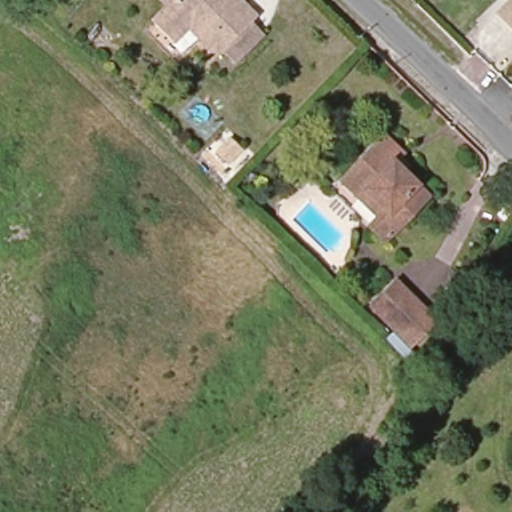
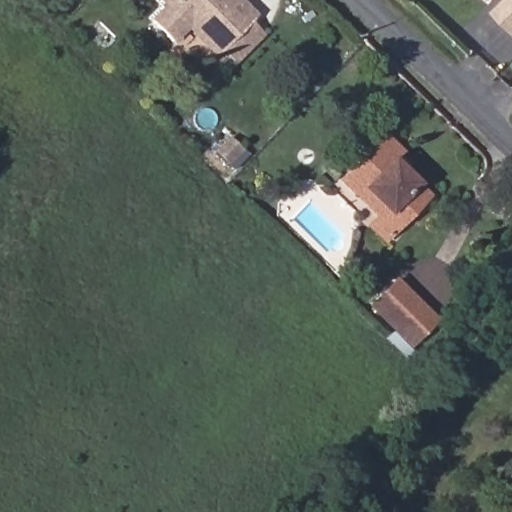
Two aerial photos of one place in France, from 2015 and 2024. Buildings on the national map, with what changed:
unchanged [(217,57),(202,42),(188,29),(170,46),(151,26),(168,9),(159,0),(238,0),(256,18),(252,22),(263,32),(231,64),(221,53),(217,57)]
unchanged [(512,2),(512,26),(500,14),(512,2)]
unchanged [(375,222),(385,211),(364,190),(361,192),(345,177),(389,132),(404,149),(402,152),(394,160),(403,169),(429,195),(400,225),(390,236),(375,222)]
unchanged [(396,327),(371,302),(396,277),(421,302),(436,316),(412,342),(396,327)]

